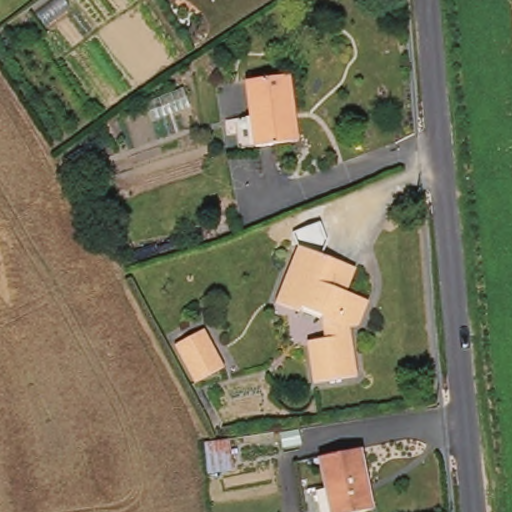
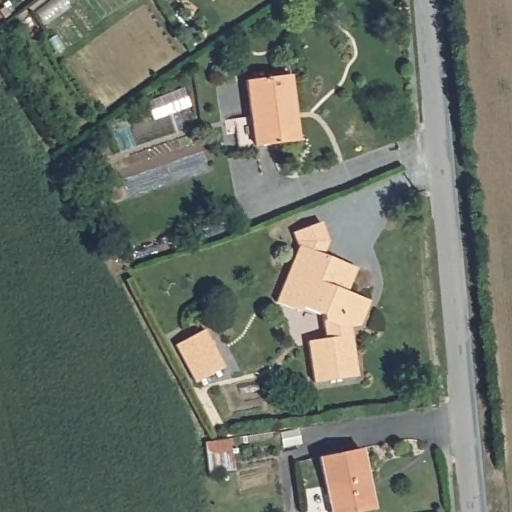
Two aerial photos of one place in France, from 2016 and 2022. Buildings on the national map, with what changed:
unchanged [(245,81),(287,74),(293,111),(288,112),(293,139),(256,146),(245,81)]
unchanged [(325,335),(323,312),(305,302),(296,308),(273,296),(301,240),(356,267),(346,288),(370,300),(360,322),(351,325),(358,376),(315,382),(307,337),(325,335)]
unchanged [(177,343),(206,330),(226,367),(197,381),(177,343)]
unchanged [(204,440),(229,437),(230,451),(205,454),(204,440)]
unchanged [(322,455),(363,445),(380,505),(348,512),(337,512),(322,455)]

